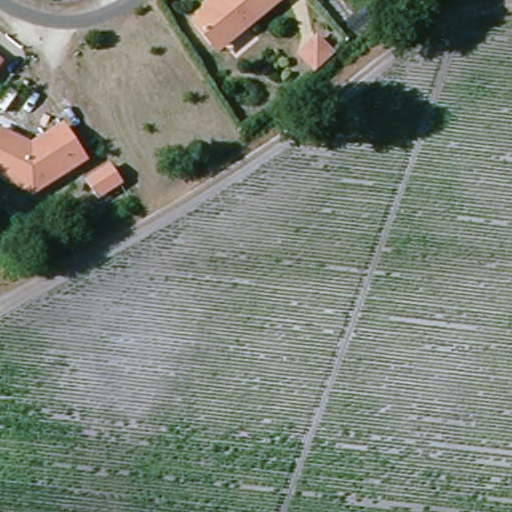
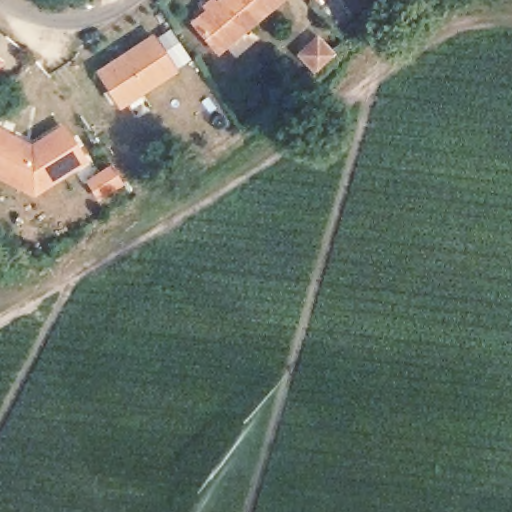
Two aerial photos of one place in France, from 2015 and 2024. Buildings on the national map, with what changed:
unchanged [(218,40),(200,18),(221,0),(279,0),(254,21),(230,40),(218,40)]
unchanged [(321,0),(327,0),(323,3),(321,0)]
new [(121,108),(97,72),(154,35),(179,71),(121,108)]
unchanged [(318,72),(307,61),(301,55),(307,49),(318,38),(335,55),(318,72)]
unchanged [(1,63),(0,64),(0,62),(1,63)]
unchanged [(89,162),(35,198),(0,179),(0,129),(32,145),(63,124),(89,162)]

